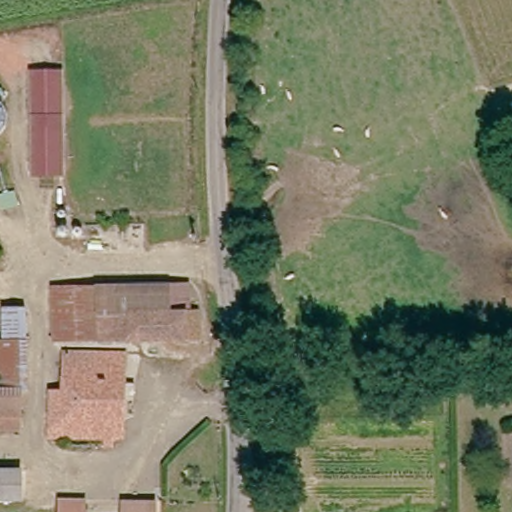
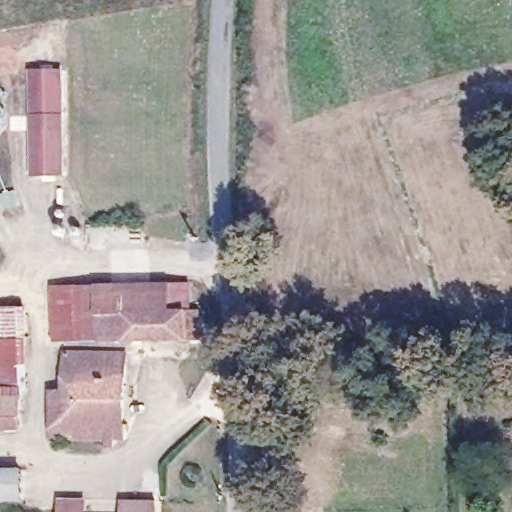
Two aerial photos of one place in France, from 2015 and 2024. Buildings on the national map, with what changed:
unchanged [(44,72),(74,75),(67,179),(36,177),(44,72)]
unchanged [(6,114),(5,122),(0,131),(0,102),(4,107),(6,114)]
unchanged [(95,317),(94,313),(93,292),(205,288),(206,312),(95,317)]
unchanged [(46,293),(93,292),(94,313),(95,317),(96,340),(48,341),(47,315),(46,293)]
unchanged [(31,375),(3,380),(3,346),(7,346),(7,311),(18,311),(29,311),(31,356),(28,356),(31,375)]
unchanged [(97,345),(96,340),(95,317),(206,312),(207,340),(97,345)]
unchanged [(59,437),(50,437),(51,400),(67,400),(67,357),(129,359),(126,420),(127,440),(59,437)]
unchanged [(0,432),(0,391),(3,391),(3,380),(31,375),(33,390),(27,391),(27,432),(0,432)]
unchanged [(21,500),(0,500),(0,471),(22,471),(21,500)]
unchanged [(88,502),(88,512),(65,512),(65,502),(88,502)]
unchanged [(159,504),(159,512),(130,512),(130,503),(159,504)]

